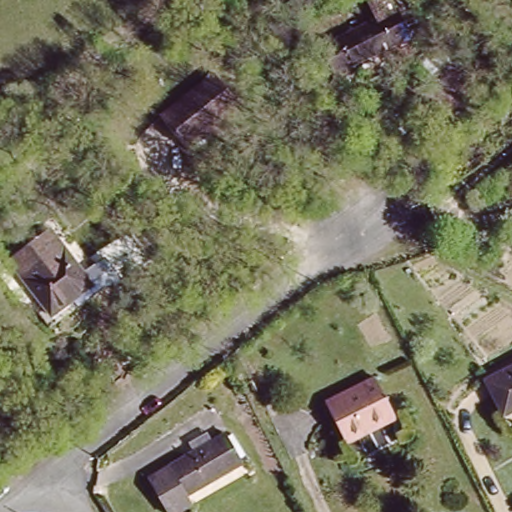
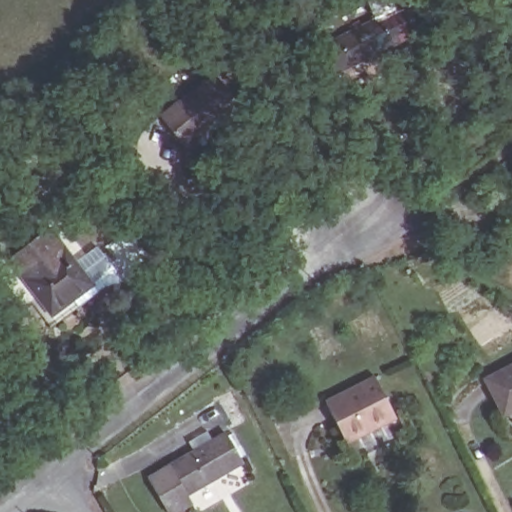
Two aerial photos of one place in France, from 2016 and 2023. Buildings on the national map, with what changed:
unchanged [(372,20),(362,7),(372,0),(388,0),(392,5),(393,3),(398,9),(408,0),(423,20),(414,27),(347,82),(327,56),(372,20)]
unchanged [(184,146),(158,116),(212,71),(243,107),(210,135),(189,152),(184,146)]
unchanged [(10,262),(52,230),(95,286),(53,318),(10,262)]
unchanged [(487,377),(512,363),(512,408),(506,411),(487,377)]
unchanged [(327,403),(376,379),(397,418),(348,442),(327,403)]
unchanged [(148,475),(167,463),(170,466),(192,452),(185,441),(203,430),(210,440),(225,432),(244,465),(192,495),(196,503),(180,512),(171,512),(148,475)]

